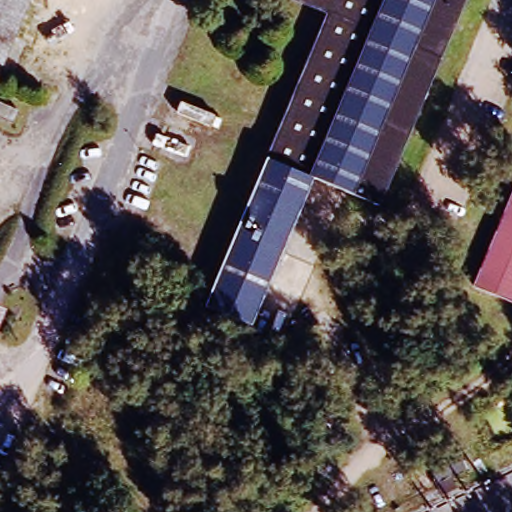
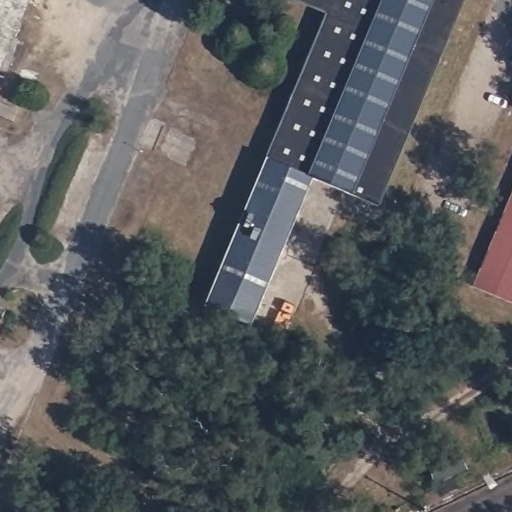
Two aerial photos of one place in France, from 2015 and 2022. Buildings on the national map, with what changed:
unchanged [(0,0),(31,0),(0,75),(0,0)]
unchanged [(294,0),(465,0),(382,205),(313,177),(252,325),(205,306),(325,12),(294,0)]
unchanged [(473,286),(512,193),(512,302),(473,286)]
unchanged [(0,322),(0,310),(4,312),(0,322)]
unchanged [(138,448),(152,455),(147,467),(133,460),(132,460),(138,448)]
unchanged [(435,483),(426,465),(458,450),(467,469),(435,483)]

